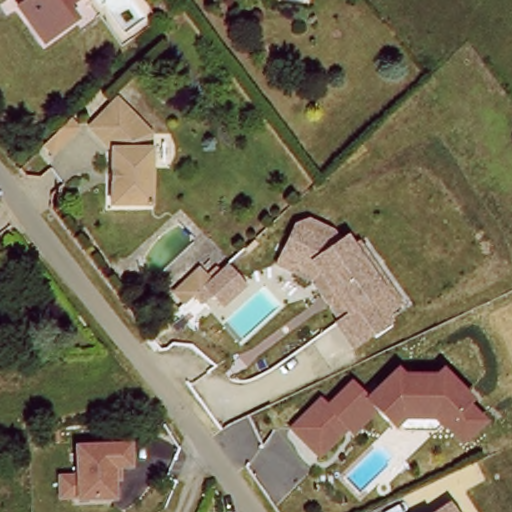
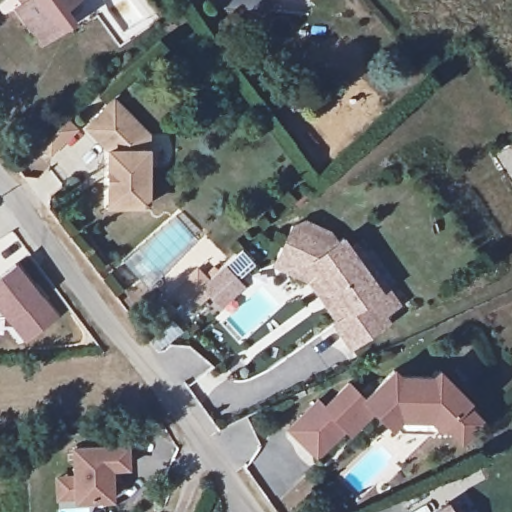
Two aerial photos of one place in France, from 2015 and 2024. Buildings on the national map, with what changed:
unchanged [(8,4),(15,0),(84,0),(63,13),(68,26),(48,38),(35,46),(20,23),(8,4)]
unchanged [(146,131),(153,197),(110,202),(106,156),(87,128),(124,99),(146,131)]
unchanged [(76,134),(50,156),(38,142),(64,118),(76,134)]
unchanged [(301,216),(346,238),(396,314),(348,349),(329,323),(333,319),(309,281),(271,266),(288,221),(301,216)]
new [(61,317),(24,343),(6,322),(4,317),(0,317),(0,274),(18,262),(61,317)]
unchanged [(177,315),(166,302),(191,277),(203,290),(177,315)]
unchanged [(341,428),(314,457),(284,429),(312,400),(319,406),(343,381),(359,396),(387,366),(394,373),(428,373),(434,366),(465,395),(462,399),(479,416),(458,438),(441,421),(437,425),(431,429),(397,430),(391,424),(388,426),(370,409),(355,424),(346,433),(341,428)]
unchanged [(58,476),(73,475),(74,446),(129,442),(131,468),(113,468),(115,501),(73,501),(56,501),(58,476)]
unchanged [(442,505),(447,512),(431,512),(442,505)]

